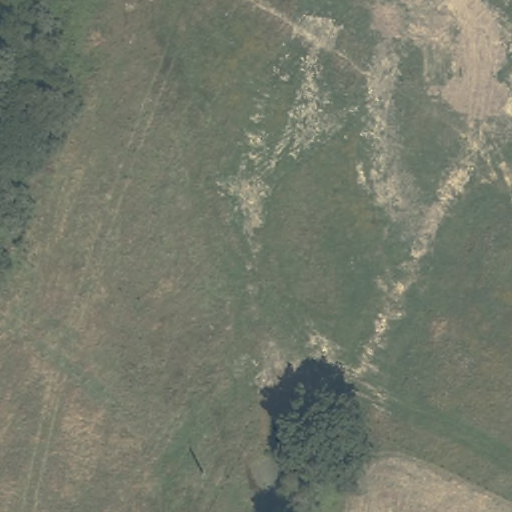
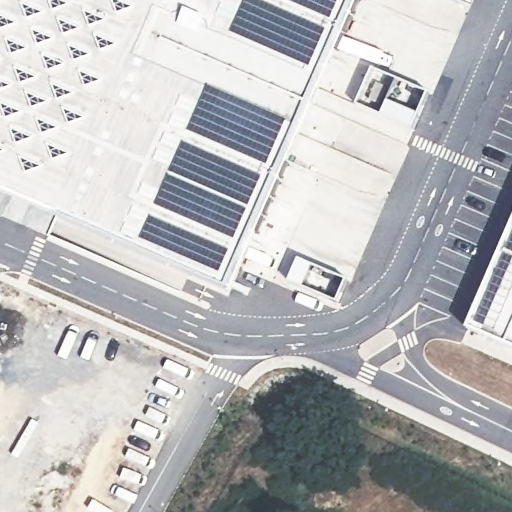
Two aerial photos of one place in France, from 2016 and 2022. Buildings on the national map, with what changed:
new [(230,293),(0,194),(0,0),(358,0),(230,293)]
new [(512,232),(512,349),(469,330),(512,232)]

